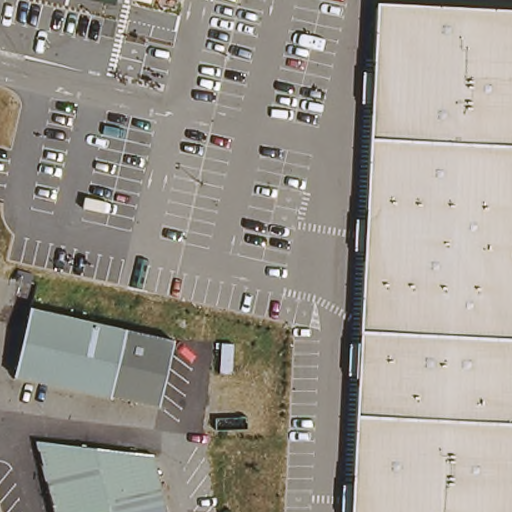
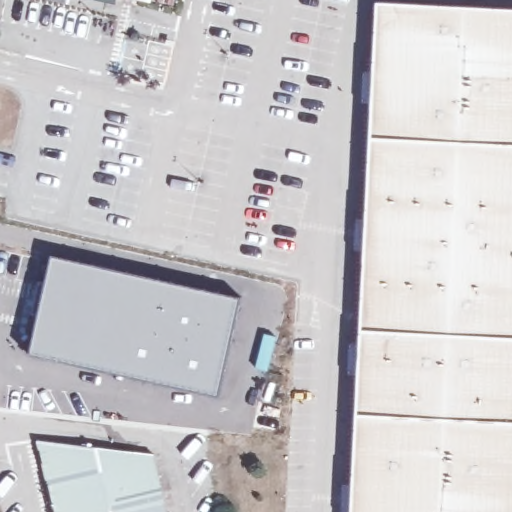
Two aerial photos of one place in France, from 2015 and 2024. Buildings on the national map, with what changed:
unchanged [(112,6),(84,0),(114,0),(112,6)]
unchanged [(351,512),(376,3),(512,10),(512,512),(351,512)]
new [(50,254),(242,297),(219,396),(29,354),(50,254)]
demolished [(170,340),(155,404),(13,371),(28,307),(170,340)]
unchanged [(166,512),(54,512),(35,436),(151,447),(166,512)]

